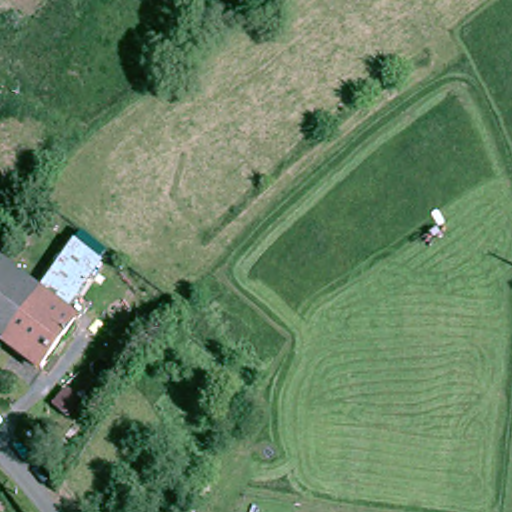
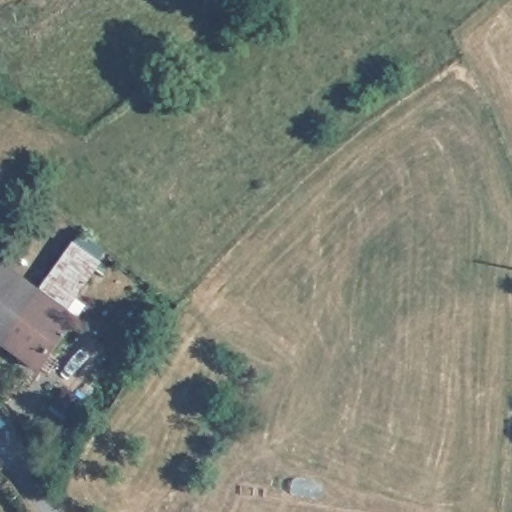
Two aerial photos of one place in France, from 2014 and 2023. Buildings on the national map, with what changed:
unchanged [(67,311),(43,293),(55,277),(80,244),(105,262),(79,294),(67,311)]
unchanged [(7,341),(0,336),(0,268),(3,264),(43,293),(7,341)]
unchanged [(81,321),(45,369),(7,341),(43,293),(67,311),(81,321)]

